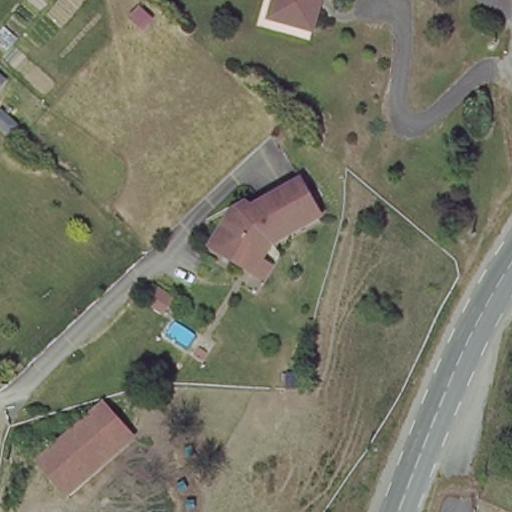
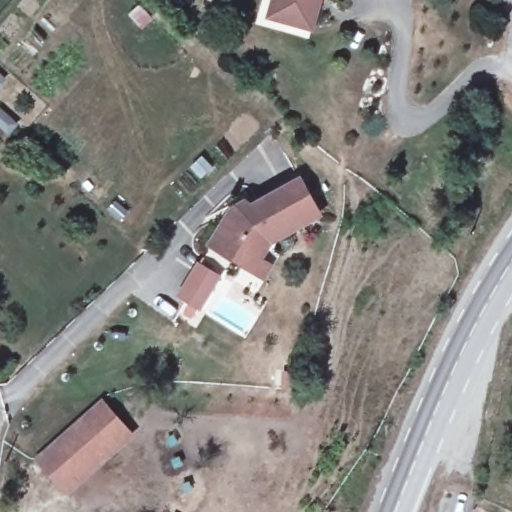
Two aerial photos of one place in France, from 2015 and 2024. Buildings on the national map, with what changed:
unchanged [(272,0),(315,0),(307,29),(285,21),(267,16),(272,0)]
unchanged [(266,275),(245,263),(212,245),(233,210),(247,201),(253,207),(298,183),(317,213),(270,241),(265,251),(255,246),(250,255),(271,266),(266,275)]
new [(197,267),(220,282),(198,316),(175,301),(197,267)]
unchanged [(133,439),(65,497),(35,461),(100,403),(133,439)]

